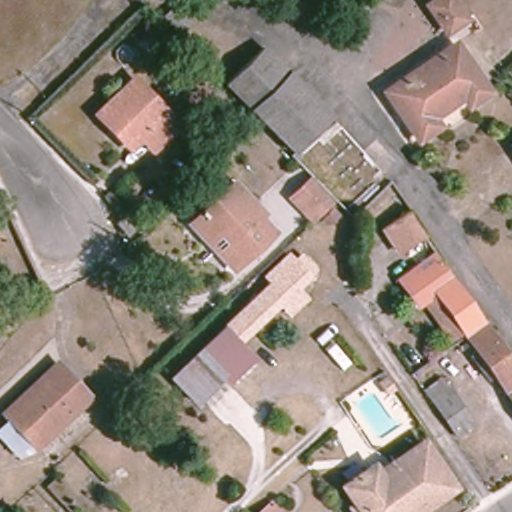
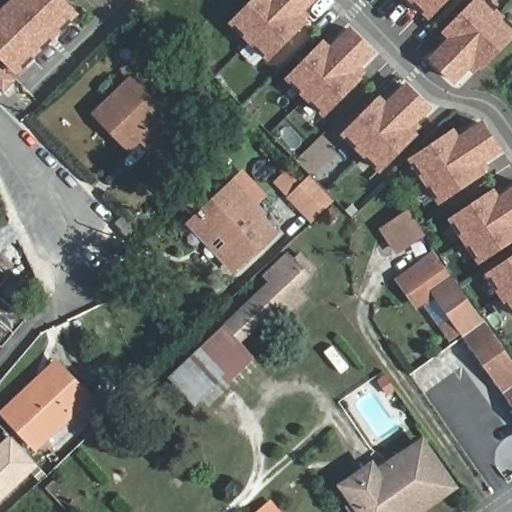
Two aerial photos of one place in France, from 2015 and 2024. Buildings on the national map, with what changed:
new [(20,0),(56,37),(37,55),(1,19),(20,0)]
new [(74,7),(70,11),(76,18),(56,37),(20,0),(67,0),(74,7)]
new [(232,23),(255,0),(313,0),(296,17),(302,24),(266,59),(232,23)]
new [(427,16),(410,0),(443,0),(427,16)]
demolished [(432,0),(450,0),(464,19),(444,32),(427,4),(432,0)]
new [(512,35),(479,68),(472,61),(452,81),(430,59),(450,39),(444,32),(476,0),(482,0),(512,30),(512,35)]
unchanged [(161,18),(176,4),(187,17),(174,30),(161,18)]
new [(1,19),(37,55),(22,70),(0,49),(0,20),(1,19)]
new [(287,79),(323,44),(329,50),(349,31),(371,54),(351,74),(358,80),(322,115),(287,79)]
demolished [(467,98),(460,90),(430,110),(438,120),(416,135),(384,85),(453,39),(486,87),(467,98)]
new [(10,80),(1,89),(0,89),(0,70),(10,80)]
demolished [(287,72),(329,115),(291,151),(252,111),(250,110),(287,72)]
unchanged [(131,80),(175,125),(150,150),(140,139),(128,150),(96,115),(131,80)]
new [(341,135),(377,101),(384,107),(404,88),(426,111),(406,130),(412,137),(377,172),(341,135)]
new [(461,133),(466,140),(489,125),(507,151),(484,166),(488,174),(447,202),(419,160),(461,133)]
demolished [(512,150),(510,146),(512,145),(512,150)]
unchanged [(311,223),(287,199),(309,177),(333,202),(311,223)]
unchanged [(190,225),(234,185),(261,214),(257,217),(270,231),(233,269),(222,258),(207,242),(190,225)]
new [(506,200),(512,196),(512,245),(487,262),(459,220),(501,192),(506,200)]
unchanged [(331,209),(338,216),(327,227),(320,220),(331,209)]
unchanged [(409,212),(425,235),(397,253),(382,230),(409,212)]
unchanged [(113,224),(120,218),(131,230),(125,237),(113,224)]
unchanged [(423,297),(415,303),(396,273),(413,262),(426,252),(433,247),(483,319),(464,331),(460,326),(448,335),(423,297)]
unchanged [(269,283),(264,277),(278,265),(283,270),(302,254),(316,268),(296,285),(306,297),(288,312),(279,302),(238,341),(248,351),(193,402),(171,378),(269,283)]
new [(512,299),(496,275),(512,264),(512,299)]
unchanged [(512,401),(464,331),(483,319),(512,362),(512,401)]
unchanged [(6,413),(49,373),(59,363),(93,398),(87,403),(40,448),(34,442),(13,420),(6,413)]
demolished [(438,380),(471,425),(456,436),(423,390),(438,380)]
new [(9,435),(38,466),(0,502),(0,442),(9,435)]
unchanged [(343,486),(363,473),(373,466),(378,472),(378,473),(422,444),(450,485),(410,512),(361,512),(350,496),(343,486)]
demolished [(205,491),(215,502),(205,512),(204,512),(194,502),(205,491)]
unchanged [(276,512),(261,512),(270,505),(276,512)]

